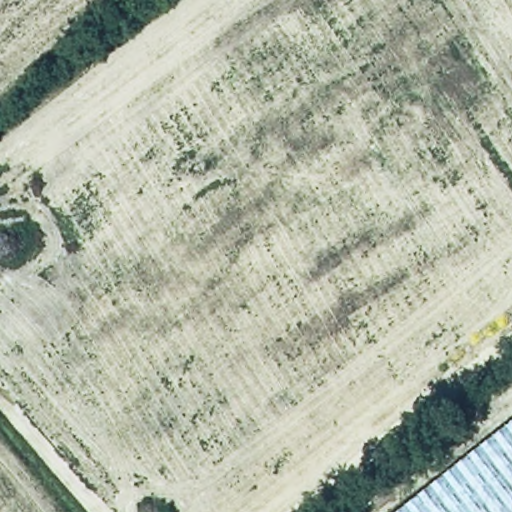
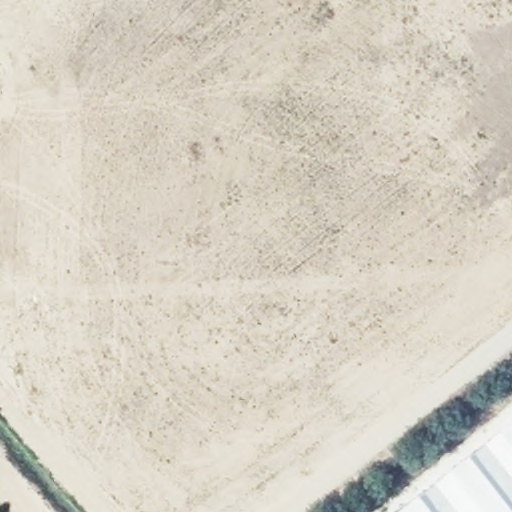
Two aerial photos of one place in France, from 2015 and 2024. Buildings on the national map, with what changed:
unchanged [(512,418),(512,512),(392,512),(512,418)]

